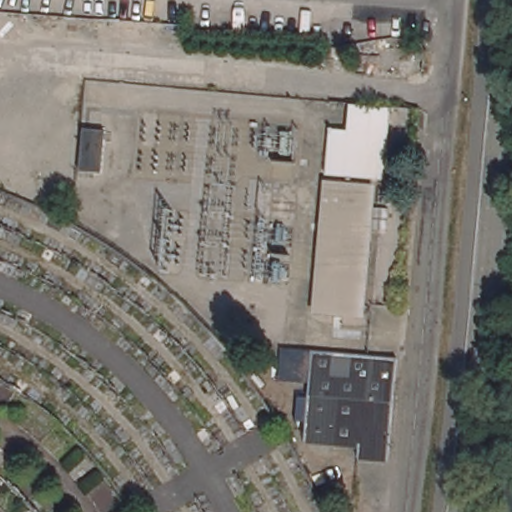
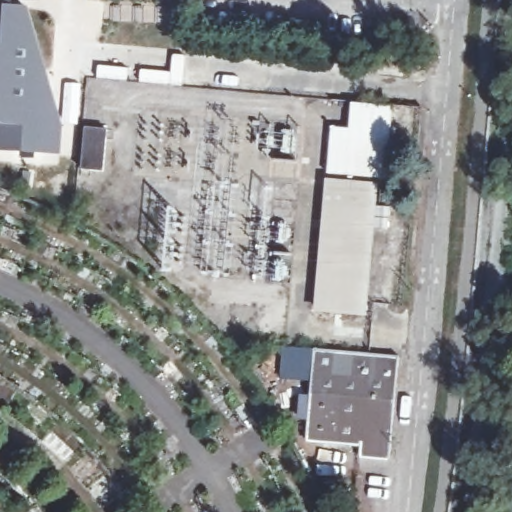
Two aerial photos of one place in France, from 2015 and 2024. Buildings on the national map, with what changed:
new [(28,5),(39,48),(61,122),(60,155),(0,150),(0,0),(14,0),(14,4),(28,5)]
new [(139,68),(169,70),(171,54),(186,55),(182,86),(138,82),(139,68)]
unchanged [(396,101),(389,172),(331,167),(335,121),(353,123),(355,97),(396,101)]
unchanged [(103,170),(82,167),(85,121),(107,122),(103,170)]
unchanged [(369,250),(364,309),(322,305),(328,236),(333,175),(376,179),(369,250)]
unchanged [(359,455),(359,443),(306,438),(314,348),(354,352),(399,356),(390,458),(359,455)]

